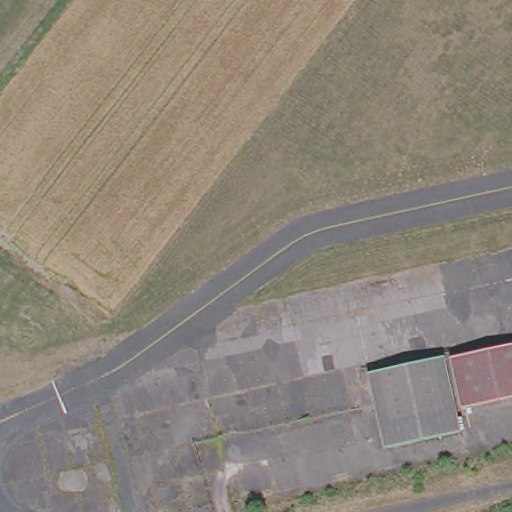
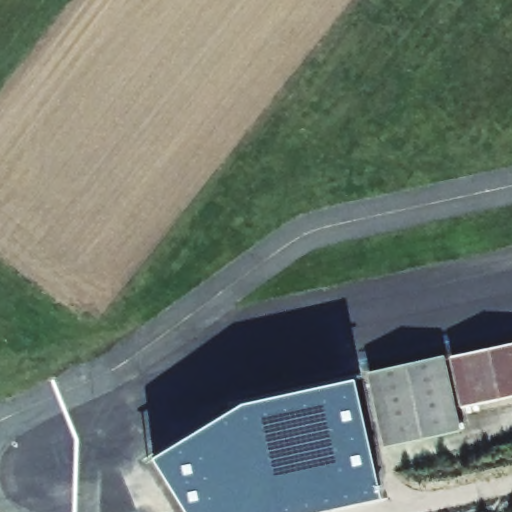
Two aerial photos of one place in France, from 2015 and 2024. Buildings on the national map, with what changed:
unchanged [(462,357),(512,348),(512,399),(472,407),(462,357)]
unchanged [(467,431),(395,448),(378,373),(452,357),(467,431)]
new [(187,512),(154,457),(243,403),(355,378),(381,497),(314,512),(187,512)]

